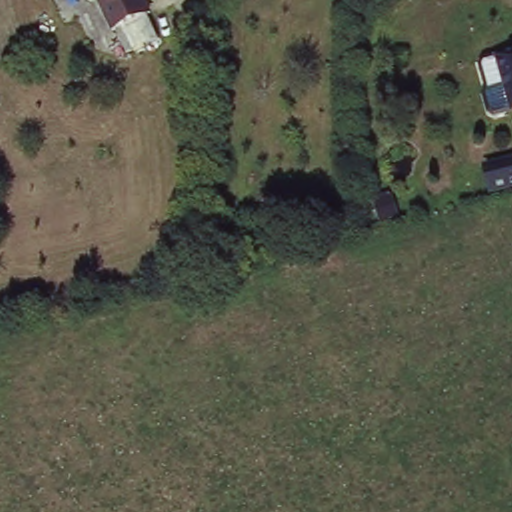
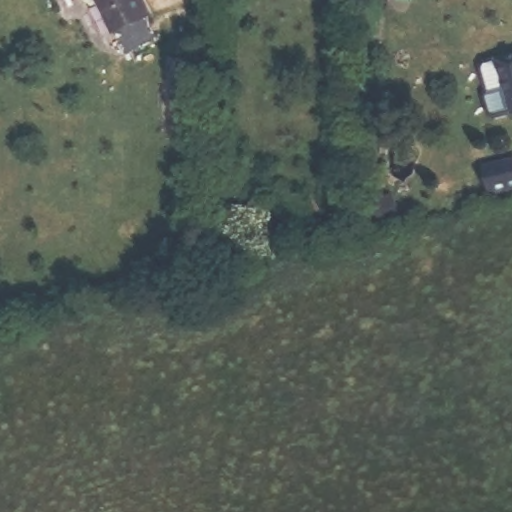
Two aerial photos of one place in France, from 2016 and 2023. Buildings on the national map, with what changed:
unchanged [(83,0),(87,0),(84,1),(83,0)]
unchanged [(111,30),(97,0),(148,0),(153,11),(111,30)]
unchanged [(512,52),(512,110),(496,57),(512,52)]
unchanged [(512,157),(512,188),(492,193),(486,165),(512,157)]

